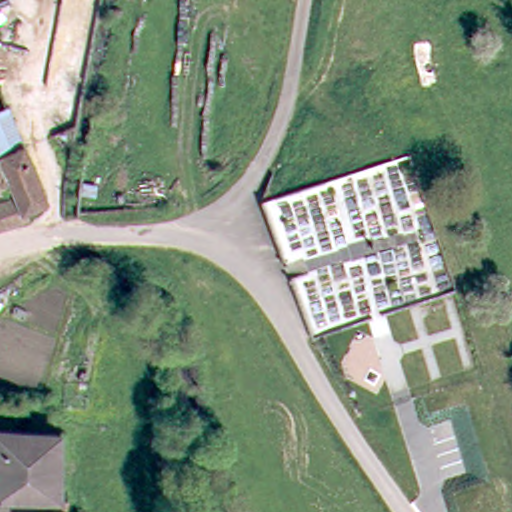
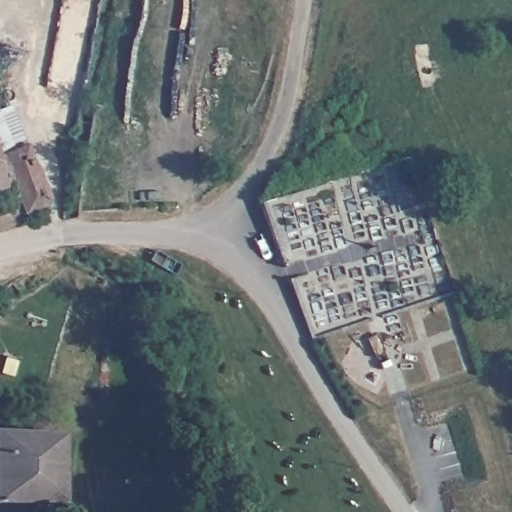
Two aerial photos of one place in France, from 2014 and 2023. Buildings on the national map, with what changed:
unchanged [(0,107),(12,103),(28,142),(0,153),(0,107)]
unchanged [(51,199),(30,207),(33,214),(0,226),(0,203),(22,195),(17,178),(5,182),(5,184),(0,186),(0,153),(28,142),(51,199)]
unchanged [(43,512),(43,498),(0,498),(0,428),(60,431),(62,498),(67,498),(64,512),(43,512)]

